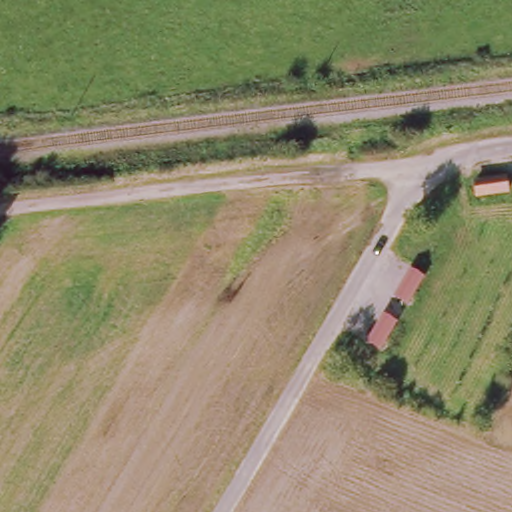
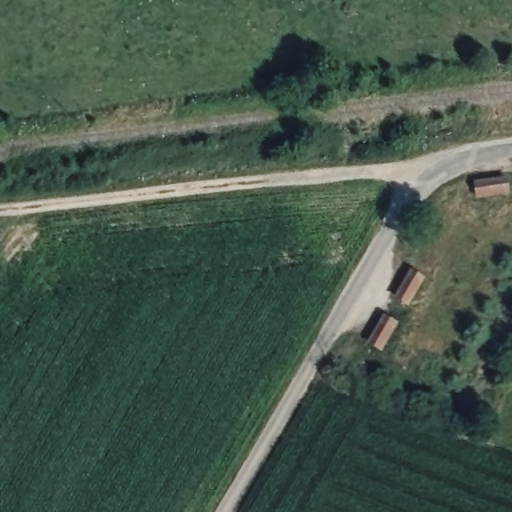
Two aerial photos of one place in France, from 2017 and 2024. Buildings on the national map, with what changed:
unchanged [(462,188),(493,185),(494,198),(463,202),(462,188)]

